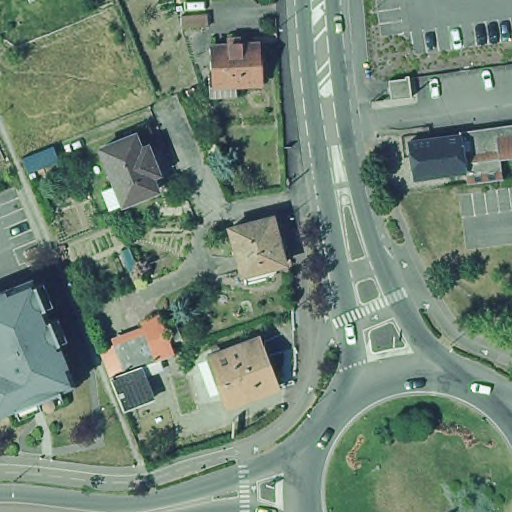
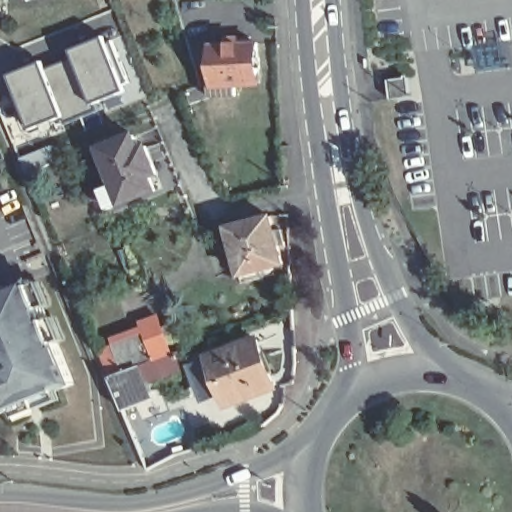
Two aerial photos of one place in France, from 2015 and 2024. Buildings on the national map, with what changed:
unchanged [(210,94),(209,84),(215,83),(213,42),(230,41),(230,35),(240,35),(240,41),(259,40),(262,81),(238,82),(238,93),(210,94)]
new [(27,115),(23,117),(9,84),(14,82),(11,76),(43,63),(46,69),(46,70),(76,58),(76,57),(73,51),(105,39),(108,45),(112,42),(128,83),(124,85),(126,92),(95,104),(64,117),(61,110),(30,122),(27,115)]
unchanged [(411,97),(390,100),(388,80),(408,78),(411,97)]
demolished [(512,126),(512,160),(497,161),(499,181),(464,185),(463,173),(459,136),(458,132),(512,126)]
unchanged [(140,150),(148,147),(159,174),(150,177),(156,191),(108,210),(102,192),(116,185),(101,150),(135,136),(140,150)]
demolished [(459,136),(463,173),(412,180),(406,143),(459,136)]
unchanged [(53,146),(60,161),(28,174),(23,159),(53,146)]
unchanged [(272,219),(283,263),(242,275),(230,229),(272,219)]
unchanged [(0,415),(0,293),(33,280),(75,385),(0,415)]
unchanged [(116,377),(117,377),(106,350),(120,345),(119,344),(138,336),(151,331),(146,322),(161,316),(176,355),(163,360),(150,365),(145,367),(157,401),(129,411),(116,377)]
unchanged [(203,363),(213,360),(210,352),(259,334),(276,381),(228,400),(219,377),(209,381),(203,363)]

